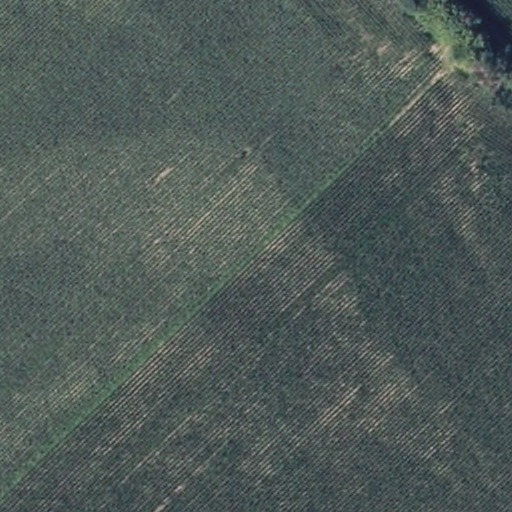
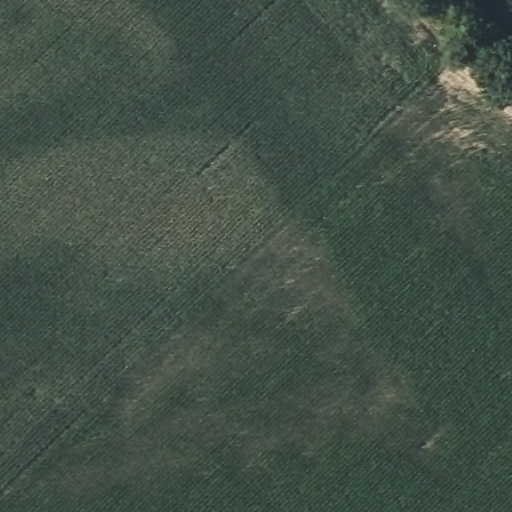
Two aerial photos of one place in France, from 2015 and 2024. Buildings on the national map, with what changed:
[]

